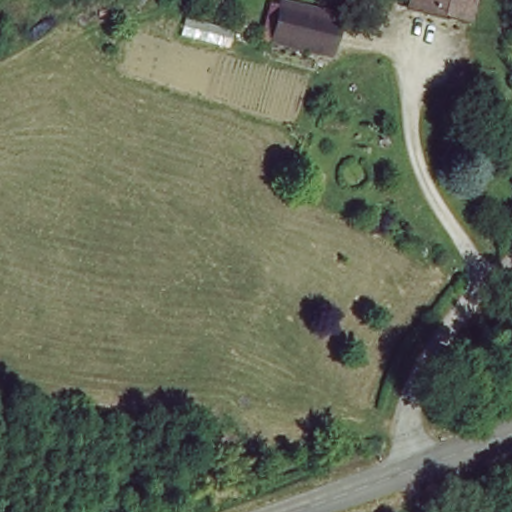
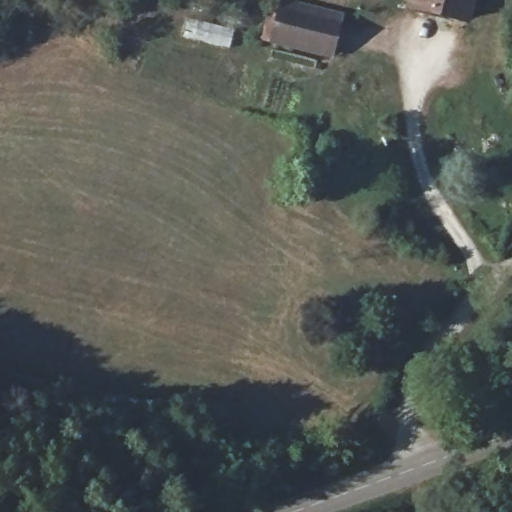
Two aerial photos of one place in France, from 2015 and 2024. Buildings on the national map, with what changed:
unchanged [(412,8),(414,0),(478,0),(471,24),(422,11),(420,10),(412,8)]
unchanged [(283,7),(333,22),(324,54),(274,40),(283,7)]

